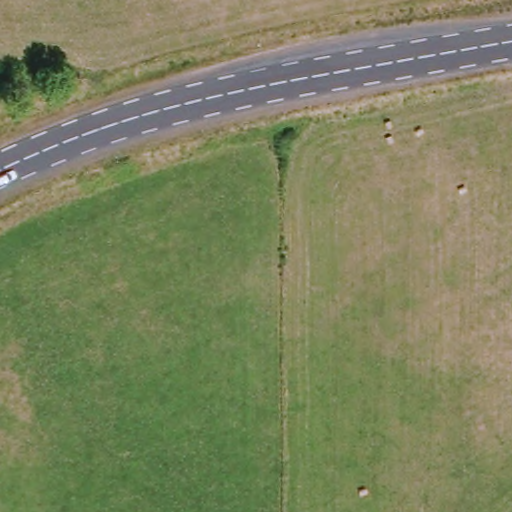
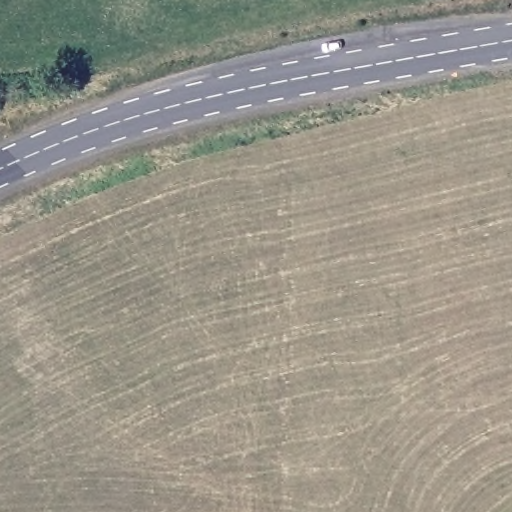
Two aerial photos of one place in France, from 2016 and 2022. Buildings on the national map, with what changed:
[]

